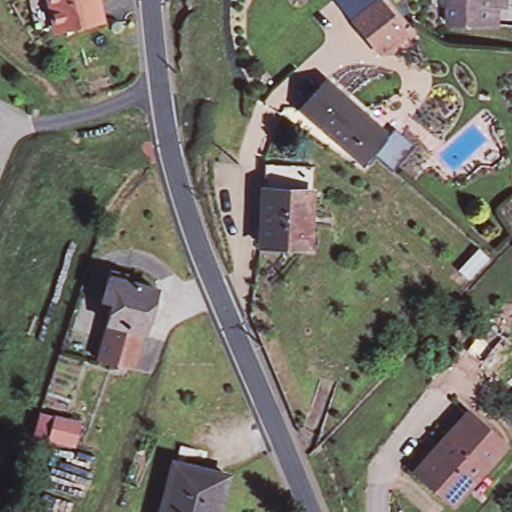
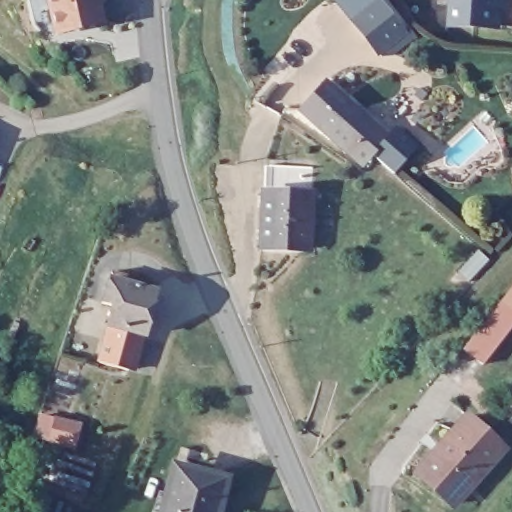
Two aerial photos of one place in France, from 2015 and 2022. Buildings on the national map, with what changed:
unchanged [(54,37),(47,0),(101,0),(106,27),(54,37)]
unchanged [(377,52),(332,0),(383,0),(403,31),(377,52)]
unchanged [(446,24),(448,0),(465,0),(488,2),(496,3),(497,0),(503,0),(503,8),(495,7),(493,22),(493,27),(461,25),(446,24)]
unchanged [(465,0),(488,0),(488,2),(465,0)]
unchanged [(363,164),(343,147),(300,111),(325,82),(368,119),(387,135),(363,164)]
unchanged [(310,264),(264,263),(265,207),(267,182),(301,184),(301,209),(312,210),(310,264)]
unchanged [(490,255),(471,278),(460,268),(478,246),(490,255)]
unchanged [(146,341),(140,339),(109,328),(115,308),(105,305),(116,275),(131,280),(130,287),(161,298),(146,341)]
new [(463,348),(512,285),(512,326),(483,363),(463,348)]
unchanged [(97,365),(109,328),(140,339),(126,375),(115,371),(114,376),(108,374),(110,371),(110,369),(97,365)]
unchanged [(512,407),(512,422),(505,416),(512,407)]
unchanged [(505,449),(456,506),(420,475),(470,418),(505,449)]
unchanged [(228,478),(220,512),(162,512),(174,465),(228,478)]

